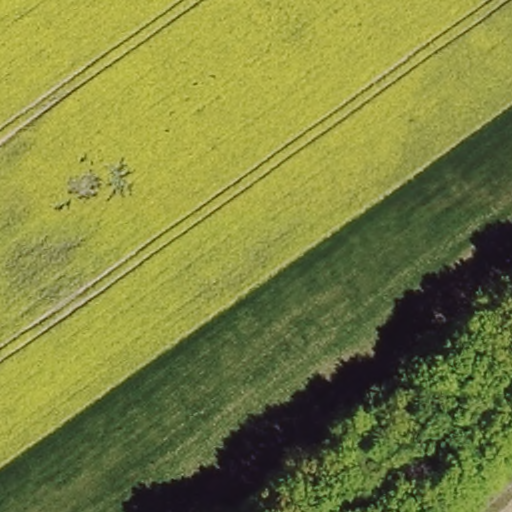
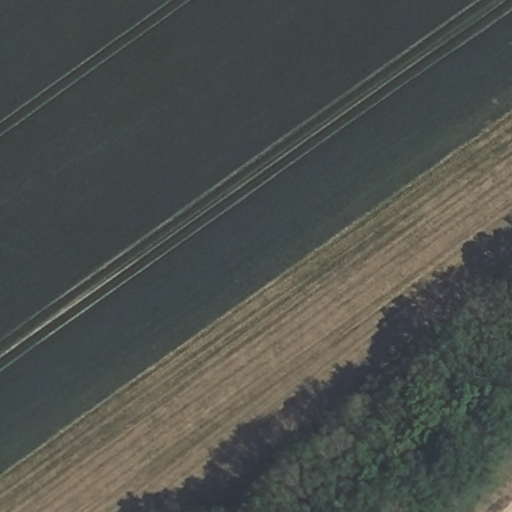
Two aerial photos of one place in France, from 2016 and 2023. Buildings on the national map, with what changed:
[]

